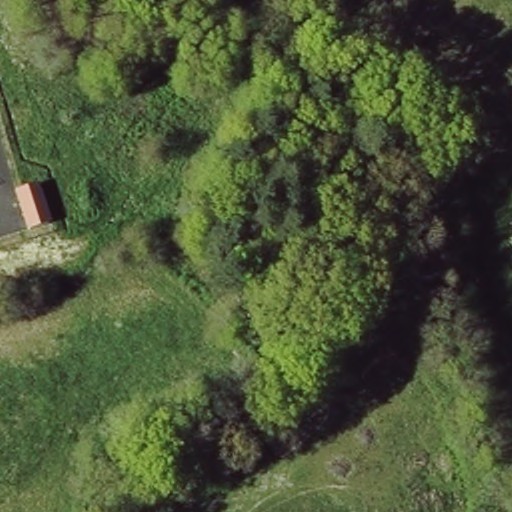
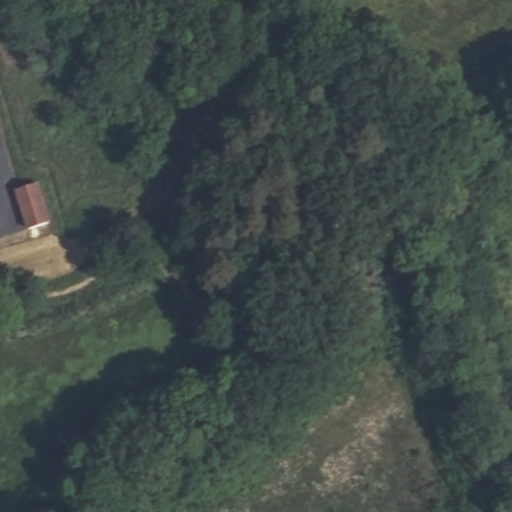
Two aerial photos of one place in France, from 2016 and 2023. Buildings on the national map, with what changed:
unchanged [(36,182),(50,221),(27,230),(14,191),(36,182)]

